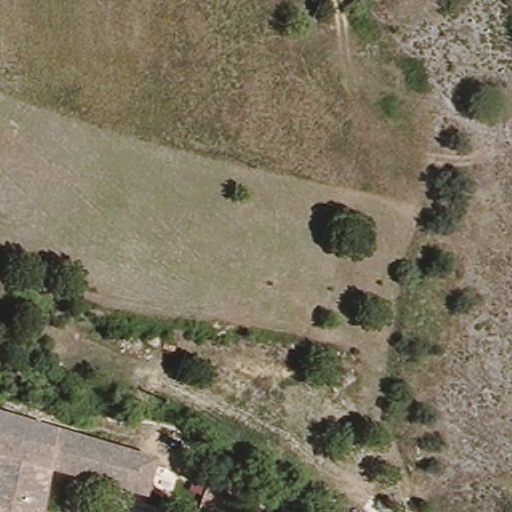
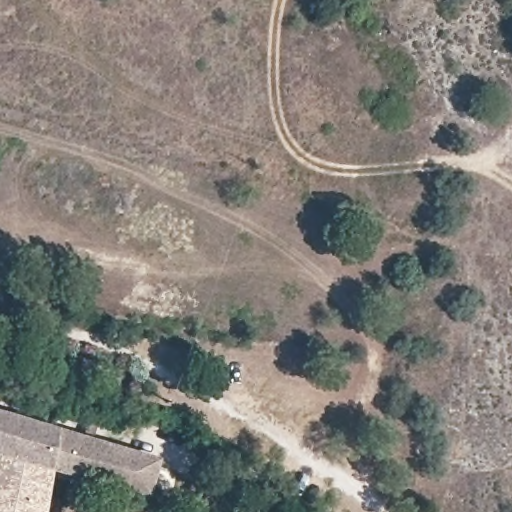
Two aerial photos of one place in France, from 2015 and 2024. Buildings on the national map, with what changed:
unchanged [(156,459),(155,465),(165,468),(160,482),(150,480),(145,493),(51,467),(42,512),(0,512),(0,412),(3,412),(156,459)]
unchanged [(205,487),(234,500),(229,512),(195,512),(205,487)]

